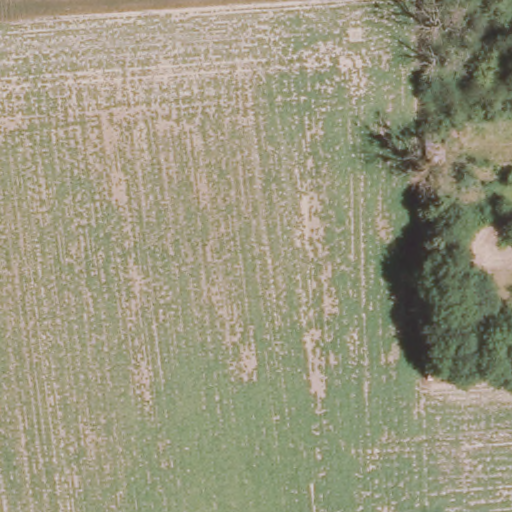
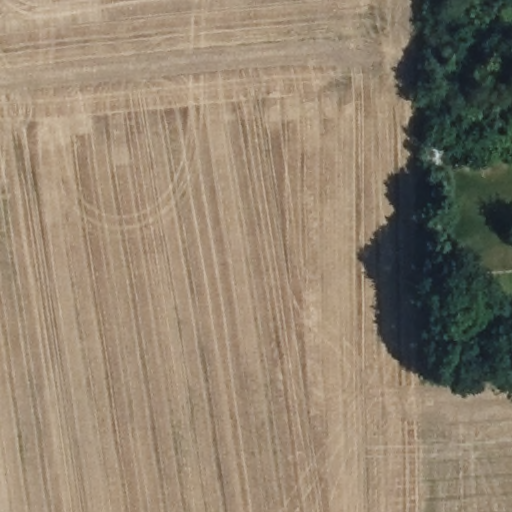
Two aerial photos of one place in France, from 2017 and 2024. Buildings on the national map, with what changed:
unchanged [(442,143),(442,166),(426,166),(426,143),(442,143)]
unchanged [(443,345),(442,381),(427,381),(427,346),(443,345)]

